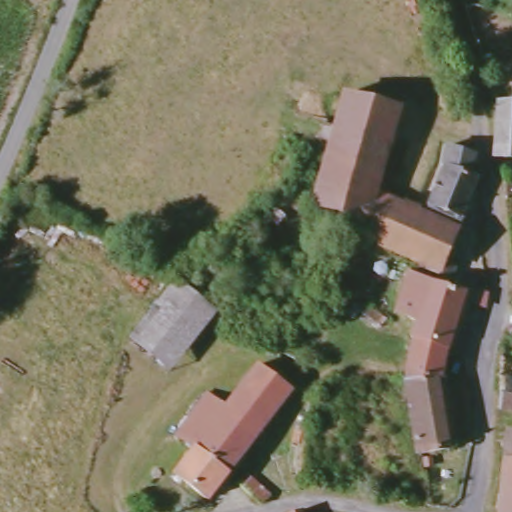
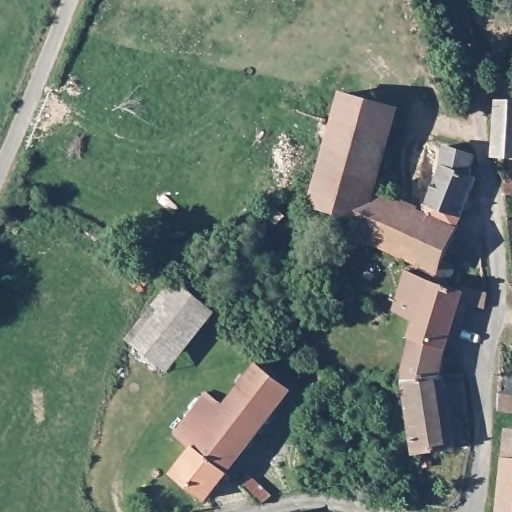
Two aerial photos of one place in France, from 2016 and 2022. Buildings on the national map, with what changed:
unchanged [(413,280),(419,265),(359,238),(364,227),(303,209),(335,97),(397,113),(373,198),(417,216),(447,229),(451,231),(437,267),(444,271),(438,290),(418,284),(413,280)]
unchanged [(490,158),(494,104),(512,105),(512,153),(511,160),(490,158)]
unchanged [(417,216),(439,165),(436,164),(443,148),(469,157),(463,175),(471,179),(447,229),(417,216)]
unchanged [(178,283),(208,312),(161,369),(127,340),(175,282),(178,283)]
unchanged [(409,325),(418,284),(438,290),(456,295),(476,299),(473,311),(453,310),(441,351),(407,344),(409,325)]
unchanged [(441,351),(439,382),(406,383),(404,365),(407,344),(441,351)]
unchanged [(193,449),(226,411),(266,364),(294,389),(223,472),(193,449)]
unchanged [(512,418),(504,417),(504,401),(498,400),(500,376),(512,378),(512,418)]
unchanged [(439,382),(444,382),(451,454),(418,458),(414,458),(406,383),(439,382)]
unchanged [(174,432),(203,397),(206,394),(226,411),(193,449),(174,432)]
unchanged [(512,434),(512,459),(496,458),(499,432),(512,434)]
unchanged [(203,496),(175,469),(193,449),(223,472),(203,496)]
unchanged [(512,459),(512,485),(493,483),(496,458),(512,459)]
unchanged [(275,494),(260,501),(232,471),(243,461),(275,494)]
unchanged [(493,483),(512,485),(512,512),(489,512),(493,483)]
unchanged [(288,512),(279,512),(288,509),(288,512)]

